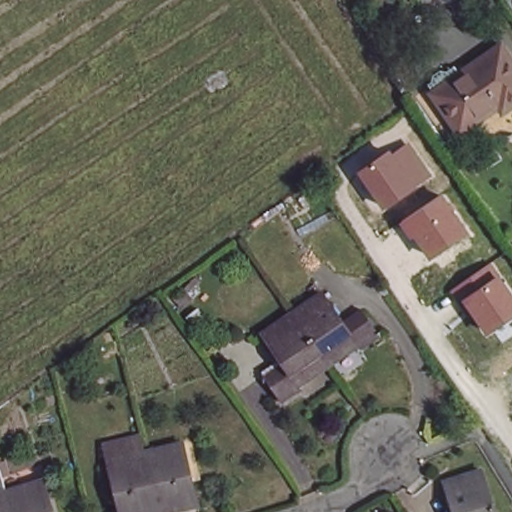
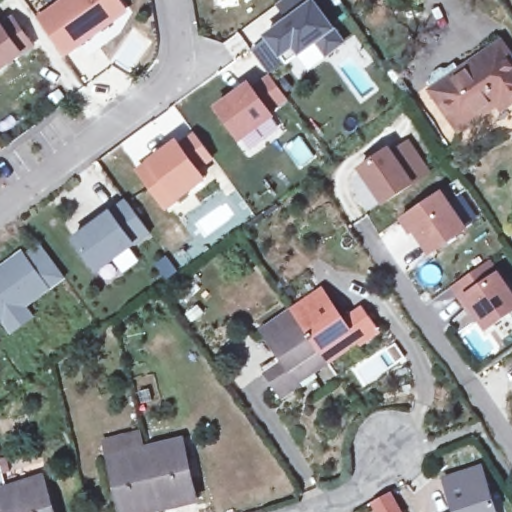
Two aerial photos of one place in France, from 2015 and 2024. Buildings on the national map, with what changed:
new [(63,56),(38,18),(64,0),(117,0),(125,11),(63,56)]
new [(278,4),(283,0),(310,0),(341,43),(326,55),(316,42),(286,64),(266,36),(289,20),(278,4)]
new [(13,19),(32,45),(0,68),(0,24),(1,26),(13,19)]
unchanged [(512,65),(512,102),(498,111),(493,104),(455,131),(431,94),(465,70),(463,66),(497,41),(512,65)]
new [(250,85),(253,90),(271,77),(286,99),(269,111),(272,115),(241,140),(218,108),(250,85)]
new [(177,142),(180,146),(196,135),(211,157),(196,169),(203,177),(164,206),(138,171),(177,142)]
unchanged [(386,149),(390,154),(408,141),(432,175),(382,206),(356,170),(386,149)]
unchanged [(439,190),(468,230),(430,255),(415,235),(409,239),(398,219),(439,190)]
new [(150,233),(98,271),(75,239),(126,201),(150,233)]
new [(51,290),(27,308),(33,317),(10,335),(0,321),(0,267),(22,250),(25,255),(38,245),(64,280),(51,290)]
unchanged [(488,262),(512,294),(512,314),(484,332),(450,288),(488,262)]
unchanged [(309,338),(289,308),(319,290),(343,325),(360,313),(376,335),(358,347),(353,341),(323,360),(309,338)]
unchanged [(294,378),(298,385),(280,398),(264,376),(284,364),(260,327),(289,308),(309,338),(323,360),(294,378)]
unchanged [(142,448),(173,440),(191,502),(156,510),(142,448)]
unchanged [(150,512),(116,512),(103,458),(142,448),(156,510),(150,512)]
unchanged [(492,512),(452,512),(440,476),(477,466),(492,512)]
unchanged [(5,486),(38,476),(50,512),(13,512),(5,486)]
unchanged [(0,487),(5,486),(13,512),(0,512),(0,487)]

